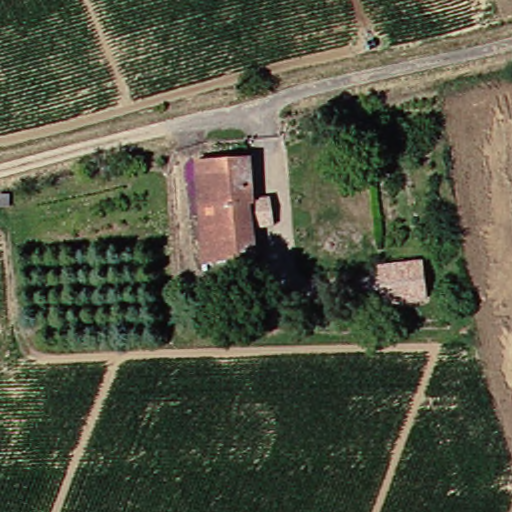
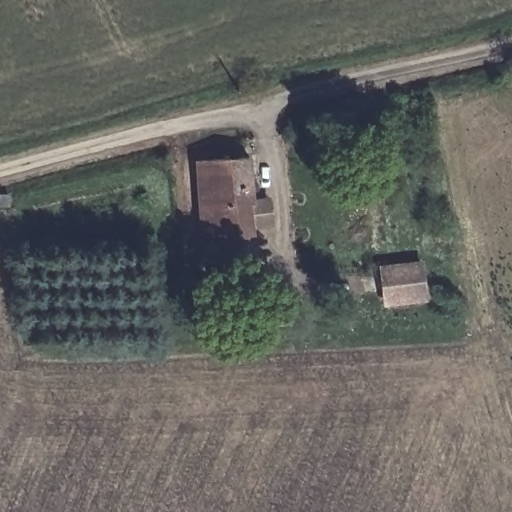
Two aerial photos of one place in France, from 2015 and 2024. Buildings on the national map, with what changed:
unchanged [(240,157),(246,202),(242,203),(246,258),(201,262),(190,164),(240,157)]
unchanged [(377,301),(375,268),(413,265),(416,299),(377,301)]

